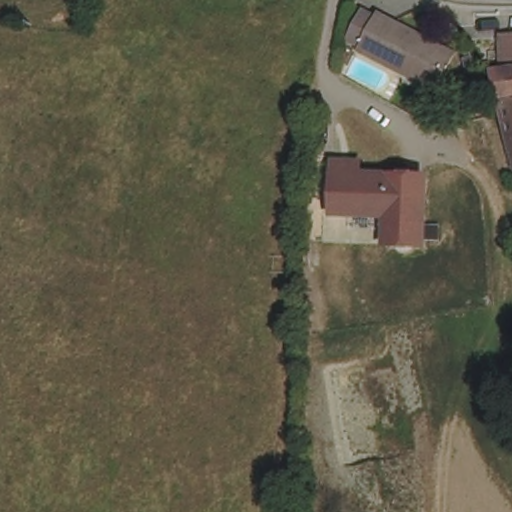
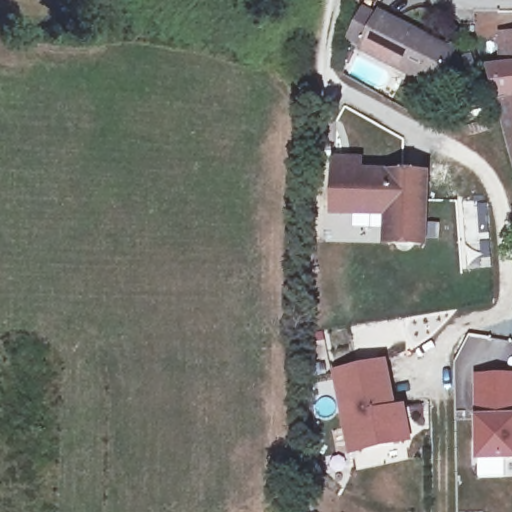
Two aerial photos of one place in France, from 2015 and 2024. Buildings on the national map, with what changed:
unchanged [(439,89),(410,73),(408,77),(363,53),(365,50),(352,42),(367,14),(380,21),(382,17),(456,57),(439,89)]
unchanged [(509,92),(502,35),(512,35),(512,92),(509,92)]
unchanged [(509,92),(512,92),(512,126),(511,126),(500,92),(509,92)]
unchanged [(511,126),(512,126),(512,169),(509,170),(500,129),(511,126)]
unchanged [(364,156),(364,167),(426,170),(426,247),(382,246),(384,216),(330,215),(331,156),(364,156)]
new [(414,442),(351,455),(335,372),(388,362),(399,408),(407,407),(414,442)]
new [(477,461),(477,417),(477,376),(512,375),(512,461),(477,461)]

